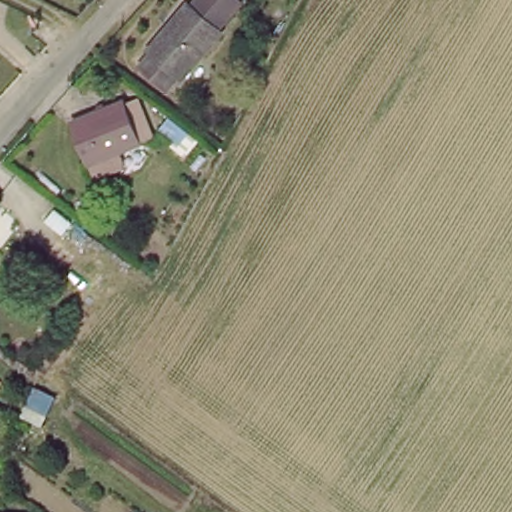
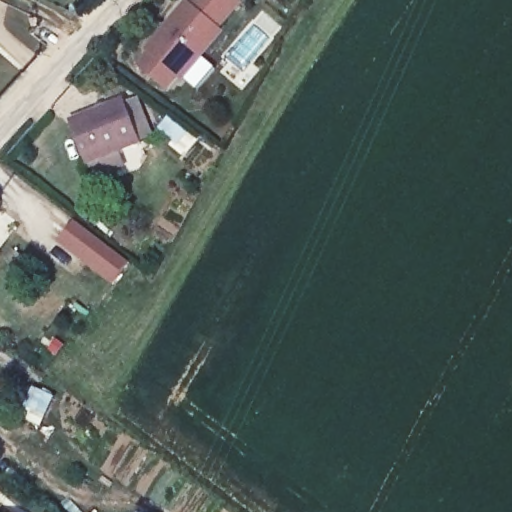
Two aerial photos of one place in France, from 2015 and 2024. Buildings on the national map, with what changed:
unchanged [(175,81),(150,57),(162,44),(159,41),(173,27),(200,0),(203,0),(205,1),(206,0),(254,0),(229,25),(234,27),(191,71),(188,69),(175,81)]
unchanged [(78,124),(133,101),(149,141),(95,164),(78,124)]
unchanged [(0,213),(0,197),(8,203),(0,213)]
new [(131,263),(114,285),(58,243),(75,220),(131,263)]

